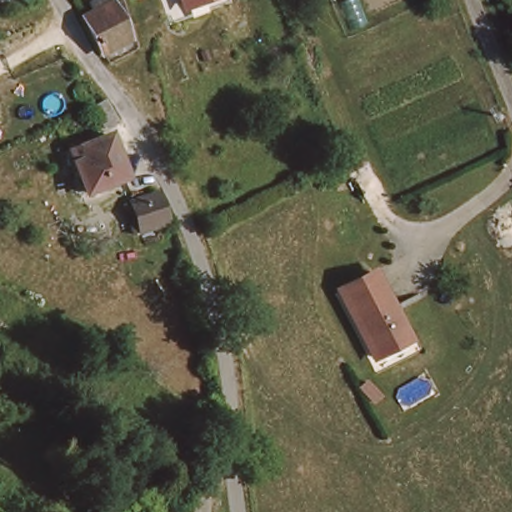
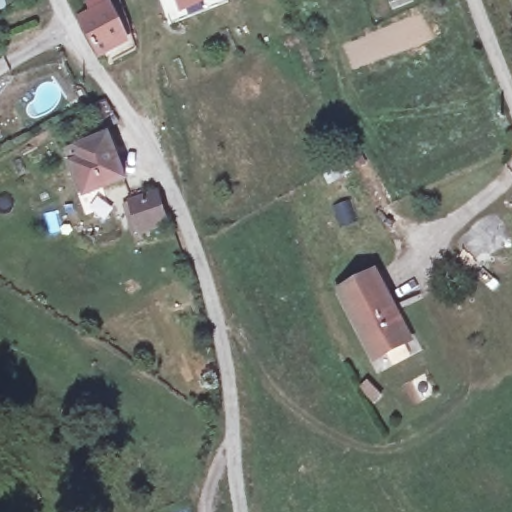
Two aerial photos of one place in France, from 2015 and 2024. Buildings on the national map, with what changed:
unchanged [(183,6),(181,0),(201,0),(183,6)]
unchanged [(91,17),(86,7),(103,1),(108,11),(125,46),(100,57),(81,21),(91,17)]
unchanged [(102,102),(113,122),(102,127),(91,107),(102,102)]
unchanged [(123,182),(87,194),(76,165),(70,166),(67,160),(73,158),(72,153),(105,141),(112,152),(123,182)]
unchanged [(155,199),(166,228),(140,234),(135,236),(124,207),(130,205),(155,199)]
unchanged [(376,272),(410,339),(377,355),(342,289),(376,272)]

